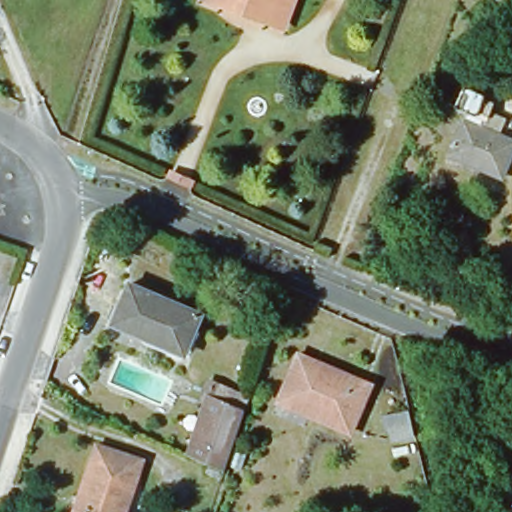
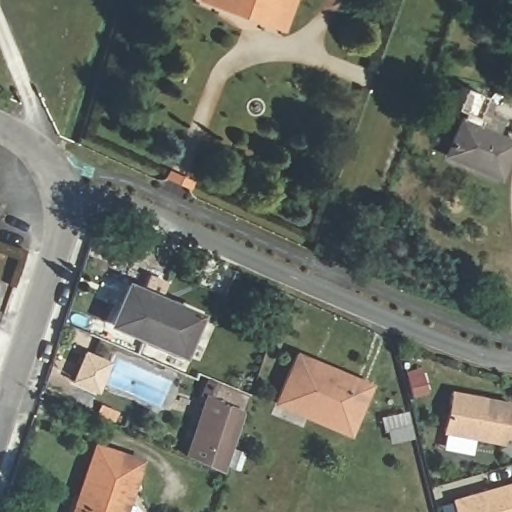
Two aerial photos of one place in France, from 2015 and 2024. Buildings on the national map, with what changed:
unchanged [(218,0),(217,0),(289,0),(281,24),(252,13),(233,6),(218,0)]
unchanged [(512,146),(498,179),(447,157),(460,124),(512,146)]
unchanged [(185,353),(115,323),(131,284),(201,314),(185,353)]
unchanged [(310,365),(308,370),(347,388),(350,382),(367,389),(346,438),(273,406),(294,358),(310,365)]
new [(512,408),(512,440),(505,439),(504,445),(443,433),(452,391),(512,401),(512,406),(512,408)]
unchanged [(205,394),(242,410),(220,472),(183,455),(205,394)]
unchanged [(99,445),(143,460),(126,512),(76,512),(82,494),(99,445)]
demolished [(505,512),(505,481),(512,480),(512,512),(505,512)]
new [(456,512),(452,499),(512,482),(512,512),(456,512)]

